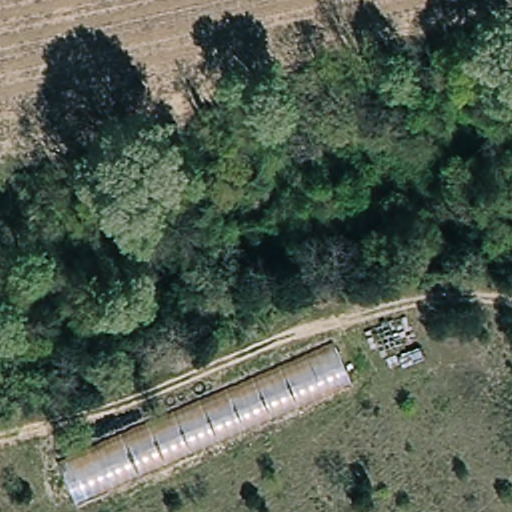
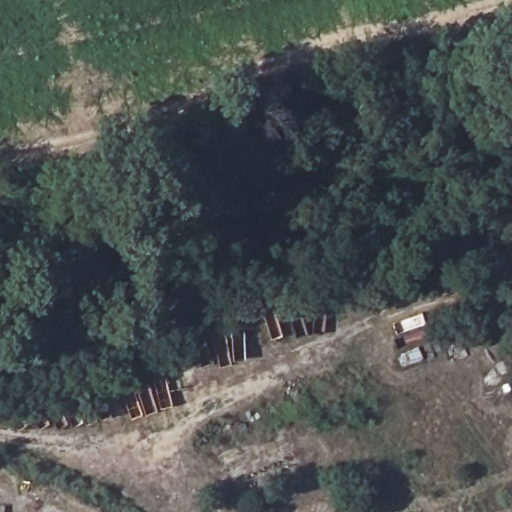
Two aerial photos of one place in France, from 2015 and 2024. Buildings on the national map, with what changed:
demolished [(57,458),(329,338),(348,376),(76,503),(57,458)]

